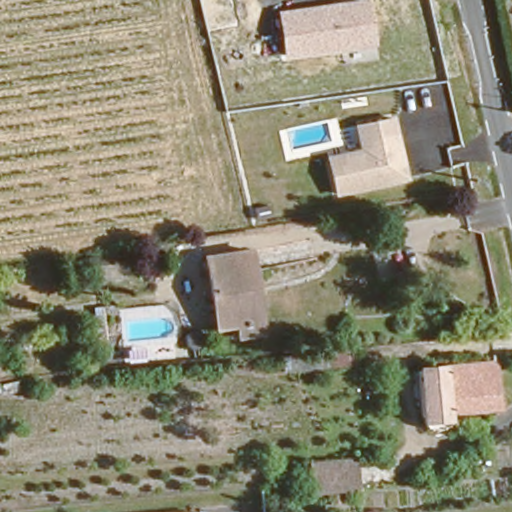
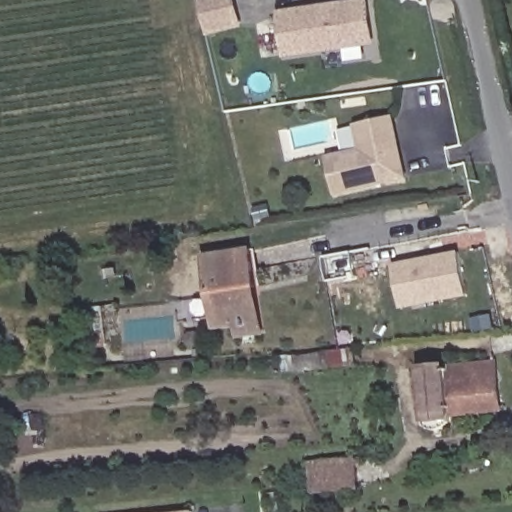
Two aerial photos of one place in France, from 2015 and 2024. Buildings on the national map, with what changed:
new [(207,36),(198,0),(236,0),(244,28),(207,36)]
unchanged [(376,45),(282,58),(276,10),(357,0),(369,0),(376,45)]
unchanged [(411,181),(333,198),(325,156),(360,149),(355,124),(396,115),(411,181)]
unchanged [(233,318),(215,320),(204,251),(249,244),(260,314),(263,325),(235,330),(233,318)]
new [(401,310),(392,263),(459,251),(468,297),(401,310)]
unchanged [(354,367),(285,374),(282,354),(351,348),(354,367)]
unchanged [(445,405),(445,419),(440,428),(434,430),(425,428),(420,419),(415,363),(489,354),(495,399),(445,405)]
unchanged [(316,491),(311,459),(354,453),(359,485),(316,491)]

